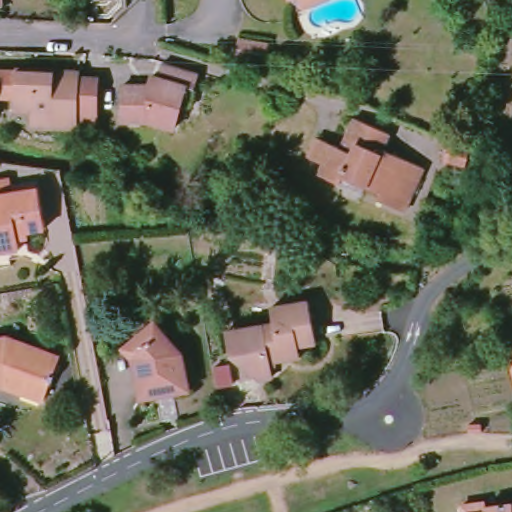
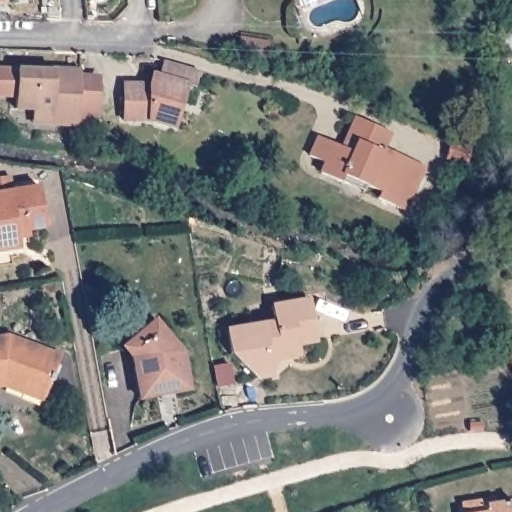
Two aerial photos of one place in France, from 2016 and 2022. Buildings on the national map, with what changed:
unchanged [(0,7),(0,0),(5,0),(5,6),(0,7)]
unchanged [(202,70),(198,87),(190,87),(178,129),(154,123),(125,123),(125,92),(143,90),(143,95),(152,94),(152,89),(152,88),(155,77),(162,78),(167,60),(202,70)]
unchanged [(18,94),(0,93),(0,68),(58,71),(59,75),(84,77),(102,78),(100,107),(82,106),(81,126),(55,124),(35,122),(36,108),(19,107),(18,94)]
unchanged [(392,133),(385,148),(428,167),(410,211),(382,200),(382,198),(351,184),(347,195),(327,186),(334,170),(315,161),(323,142),(344,151),(349,139),(358,118),(392,133)]
unchanged [(452,142),(458,142),(475,145),(472,163),(447,157),(452,142)]
unchanged [(31,232),(32,239),(22,241),(22,250),(0,254),(0,192),(42,185),(52,228),(31,232)]
unchanged [(321,343),(302,347),(304,358),(275,364),(277,379),(260,382),(232,357),(227,326),(275,319),(272,303),(312,296),(321,343)]
unchanged [(194,392),(140,401),(131,354),(164,327),(188,353),(194,392)]
unchanged [(5,388),(0,389),(0,335),(10,333),(64,354),(47,403),(5,388)]
unchanged [(510,351),(512,350),(512,361),(510,351)]
unchanged [(463,500),(485,497),(487,503),(512,499),(512,512),(464,512),(463,500)]

